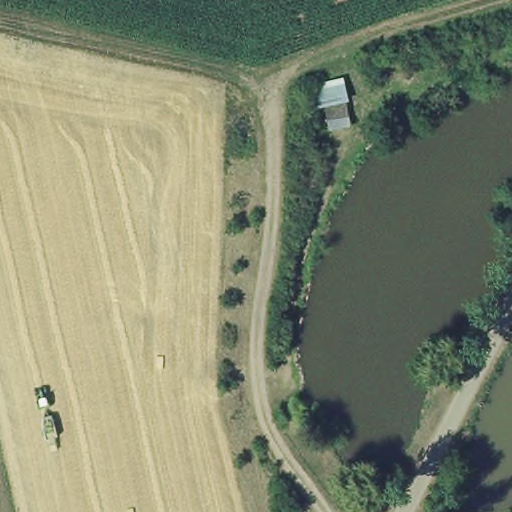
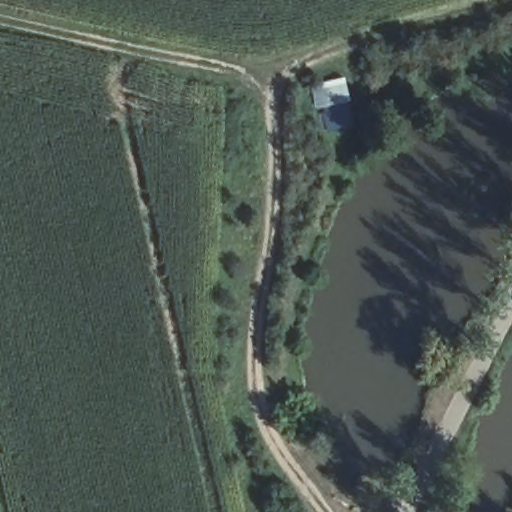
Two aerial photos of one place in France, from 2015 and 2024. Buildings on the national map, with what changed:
unchanged [(345,133),(322,135),(318,107),(341,102),(345,133)]

